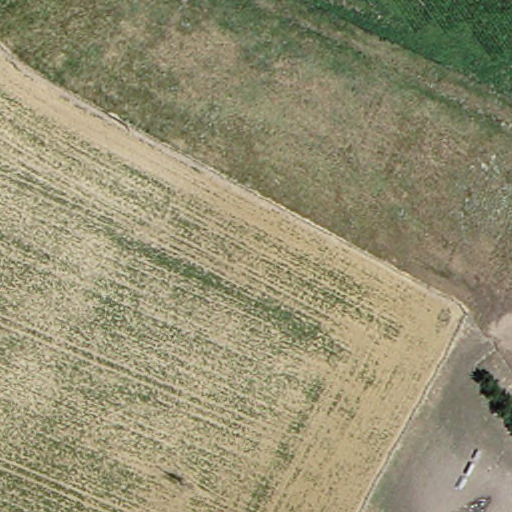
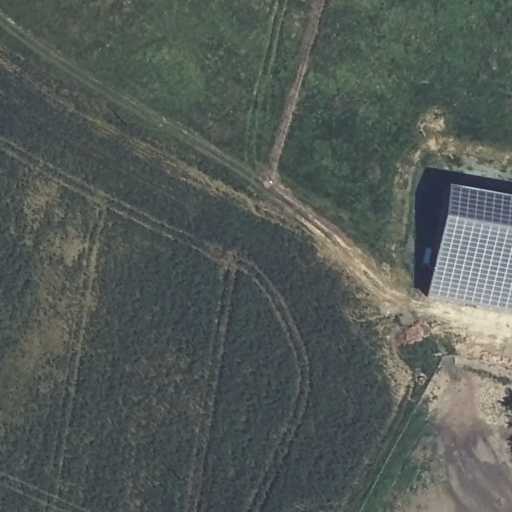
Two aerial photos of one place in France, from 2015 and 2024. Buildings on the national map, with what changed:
new [(455,188),(512,198),(512,304),(437,290),(455,188)]

